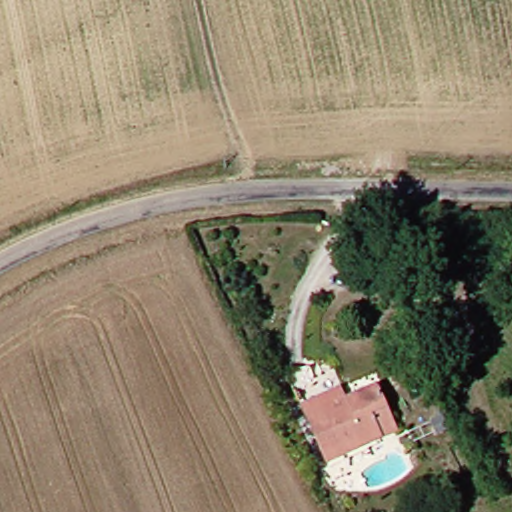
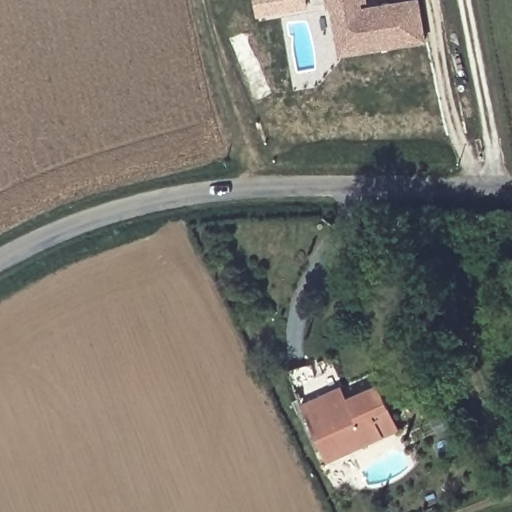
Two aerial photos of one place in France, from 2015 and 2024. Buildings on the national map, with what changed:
new [(306,0),(307,8),(257,17),(254,0),(306,0)]
new [(366,0),(367,7),(418,1),(425,43),(339,57),(328,0),(366,0)]
unchanged [(306,418),(326,405),(344,394),(350,404),(381,385),(393,405),(405,425),(388,436),(338,469),(306,418)]

